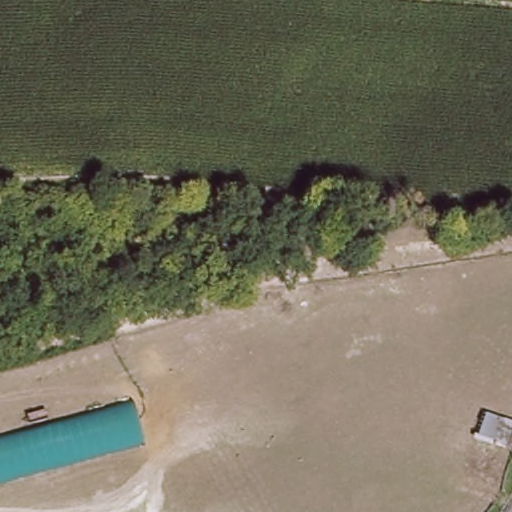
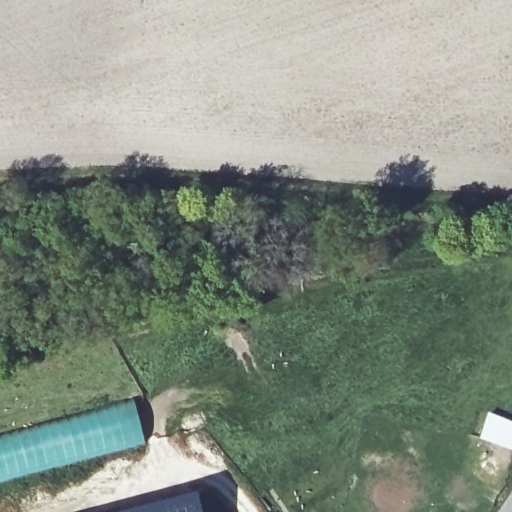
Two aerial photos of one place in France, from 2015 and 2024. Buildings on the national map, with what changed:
unchanged [(137,397),(146,440),(0,478),(0,433),(137,397)]
new [(197,492),(203,512),(120,512),(197,492)]

